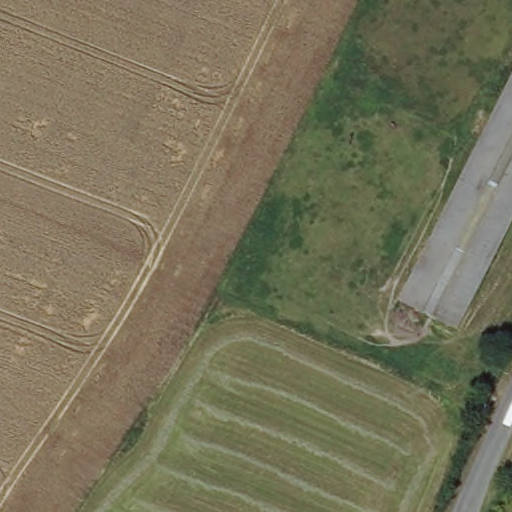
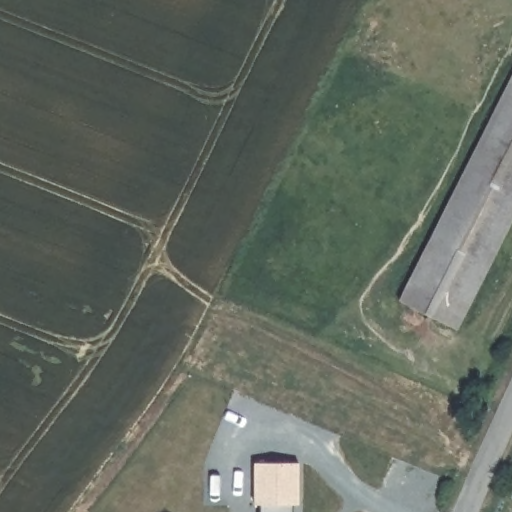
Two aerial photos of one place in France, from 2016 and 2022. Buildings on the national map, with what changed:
unchanged [(512,78),(512,217),(460,321),(405,295),(506,89),(512,78)]
new [(254,502),(254,461),(298,461),(298,502),(293,502),(293,512),(259,512),(259,502),(254,502)]

